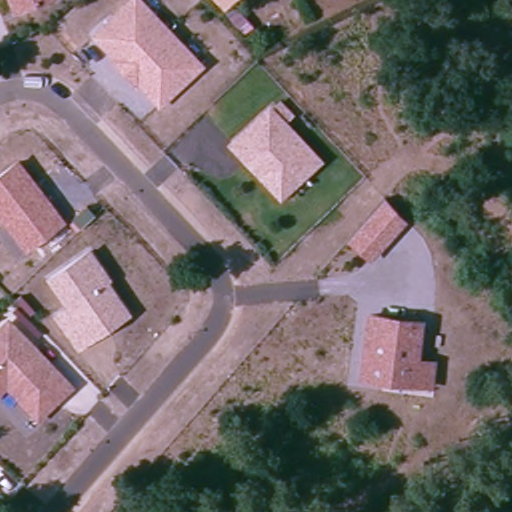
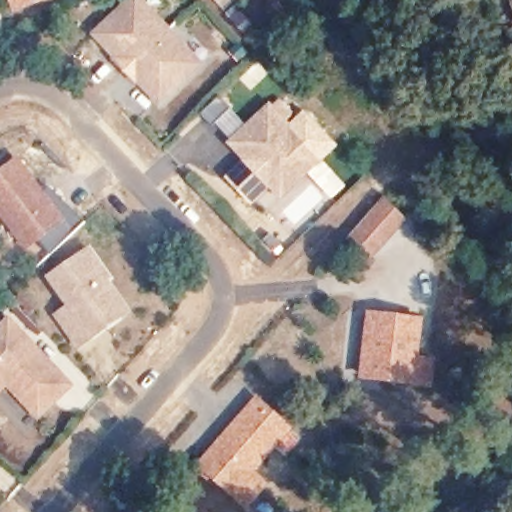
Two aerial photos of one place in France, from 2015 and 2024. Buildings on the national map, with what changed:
unchanged [(58,0),(20,13),(15,0),(58,0)]
unchanged [(114,58),(93,35),(132,0),(137,0),(199,67),(156,105),(135,81),(133,83),(112,60),(114,58)]
unchanged [(511,6),(512,6),(512,10),(511,6)]
unchanged [(251,168),(234,149),(271,115),(273,117),(282,109),(293,120),(283,128),(319,166),(302,181),(282,200),(251,168)]
unchanged [(0,209),(0,174),(21,160),(64,221),(39,238),(26,246),(17,233),(0,209)]
unchanged [(402,222),(373,259),(351,241),(383,201),(402,222)]
unchanged [(94,337),(79,346),(59,314),(72,306),(53,276),(94,251),(112,279),(110,281),(131,314),(94,337)]
unchanged [(433,386),(407,383),(367,378),(374,317),(424,323),(419,363),(435,365),(433,386)]
unchanged [(10,384),(0,393),(0,337),(15,324),(73,390),(56,404),(40,418),(26,402),(10,384)]
new [(295,427),(257,472),(271,484),(246,509),(196,463),(258,395),(295,427)]

